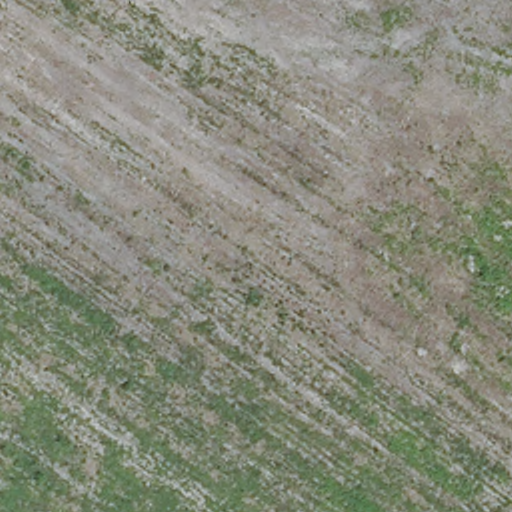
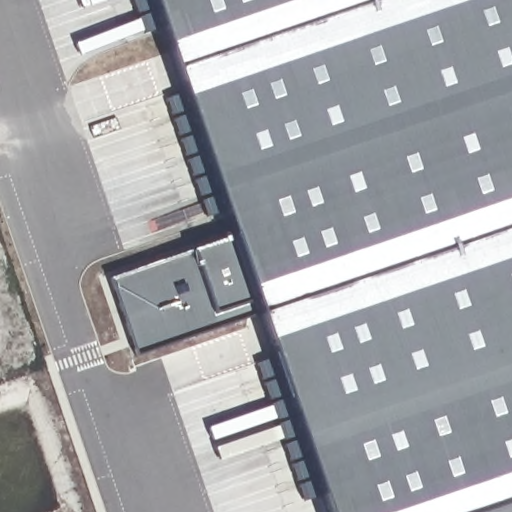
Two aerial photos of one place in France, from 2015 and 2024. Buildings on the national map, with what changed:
new [(270,309),(132,351),(116,284),(247,239),(165,0),(512,0),(512,512),(335,512),(270,309)]

